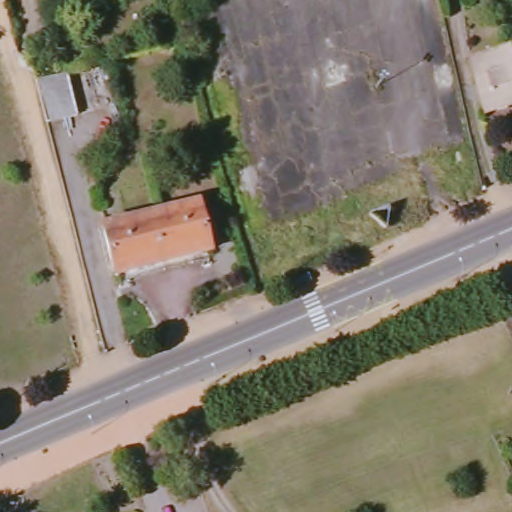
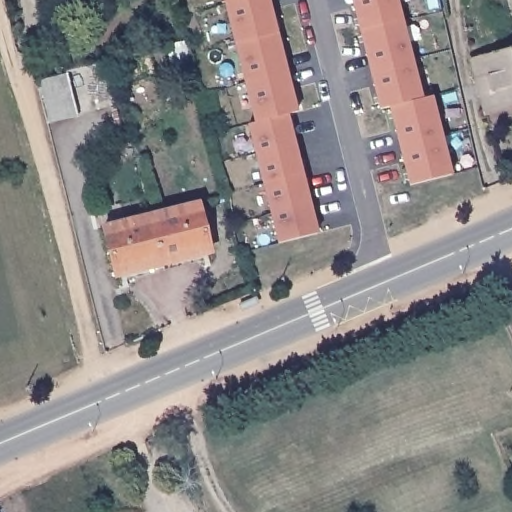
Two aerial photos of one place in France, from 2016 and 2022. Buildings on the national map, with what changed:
new [(287,114),(317,234),(278,247),(247,125),(252,122),(220,0),(271,0),(298,111),(287,114)]
new [(433,91),(453,177),(405,187),(388,107),(378,109),(348,0),(398,0),(420,95),(433,91)]
unchanged [(173,70),(168,52),(185,48),(189,65),(173,70)]
unchanged [(512,54),(512,109),(483,117),(470,66),(512,54)]
unchanged [(37,81),(42,80),(65,74),(77,122),(48,129),(37,81)]
unchanged [(199,205),(210,252),(205,254),(207,261),(213,260),(215,269),(195,273),(194,268),(198,267),(197,261),(158,271),(145,218),(199,205)]
unchanged [(130,277),(133,290),(115,295),(113,285),(117,284),(115,275),(111,276),(100,229),(145,218),(158,271),(130,277)]

